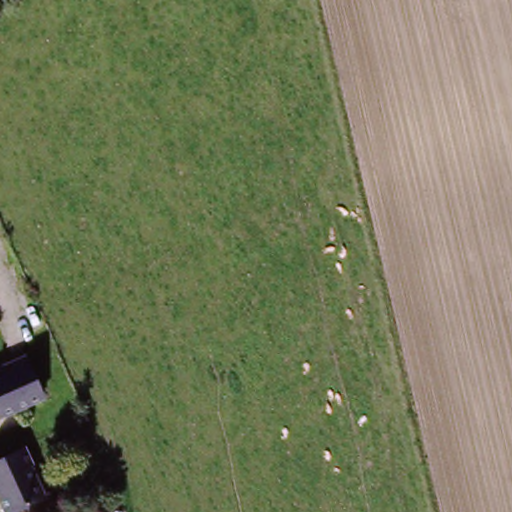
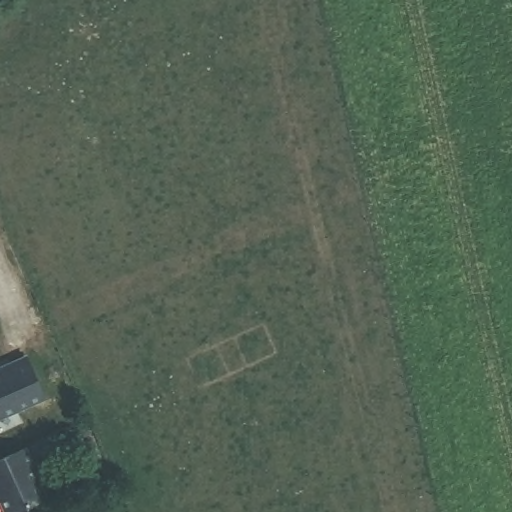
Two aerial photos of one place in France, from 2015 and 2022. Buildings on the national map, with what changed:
unchanged [(9,365),(24,358),(43,398),(0,417),(0,373),(8,370),(9,365)]
unchanged [(0,455),(25,444),(47,495),(7,512),(6,512),(0,501),(0,455)]

